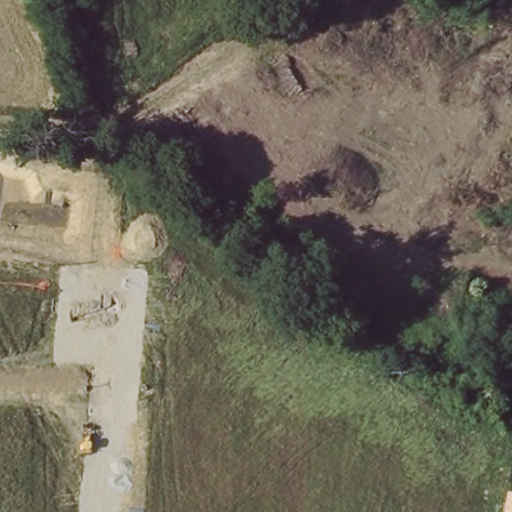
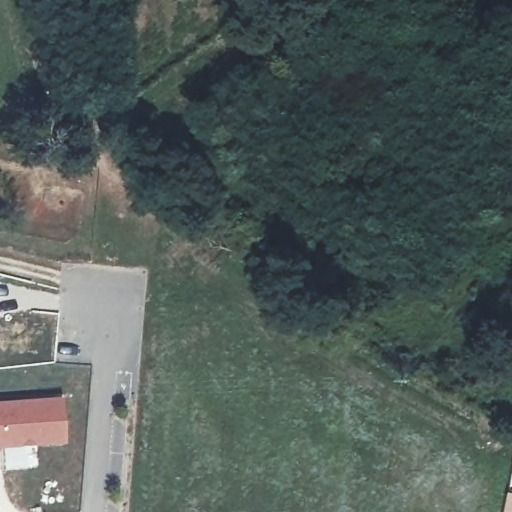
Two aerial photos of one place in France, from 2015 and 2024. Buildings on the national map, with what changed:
new [(63,396),(67,445),(0,449),(0,400),(63,396)]

